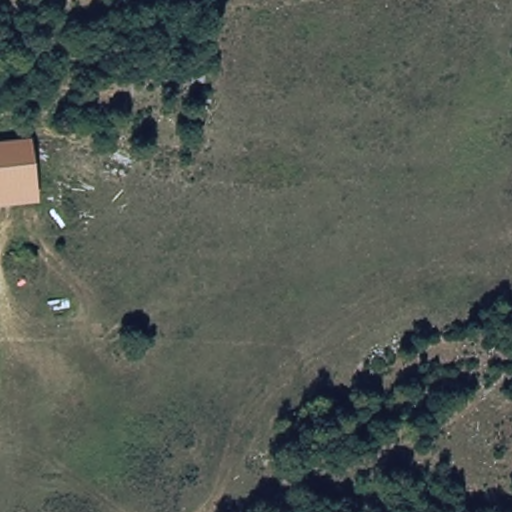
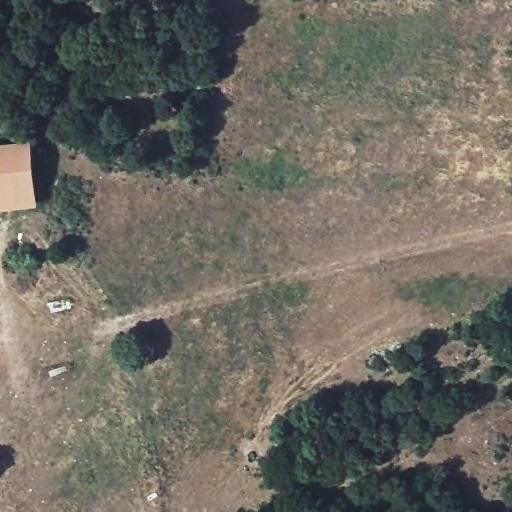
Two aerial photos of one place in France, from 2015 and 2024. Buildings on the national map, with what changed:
unchanged [(38,202),(0,207),(0,141),(31,137),(38,202)]

